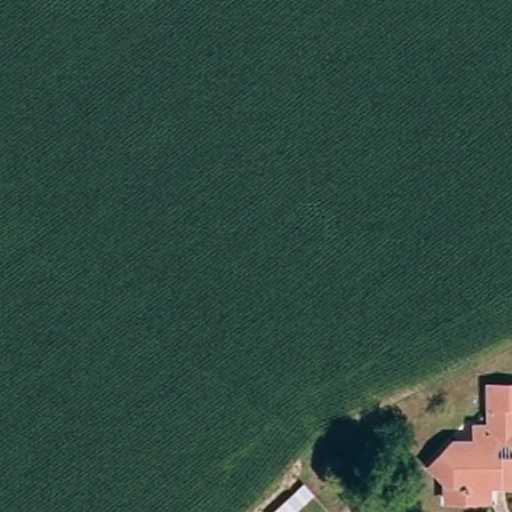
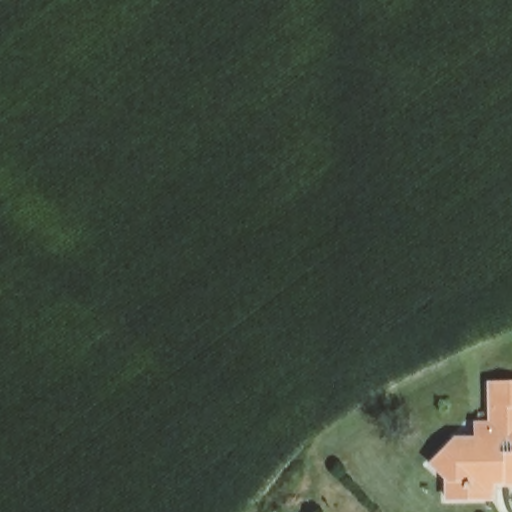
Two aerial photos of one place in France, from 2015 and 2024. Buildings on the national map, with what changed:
unchanged [(425,460),(446,437),(460,450),(473,438),(473,423),(485,423),(485,384),(512,383),(512,403),(509,403),(510,428),(512,430),(512,483),(495,483),(495,470),(485,470),(485,498),(461,500),(443,502),(442,477),(425,460)]

